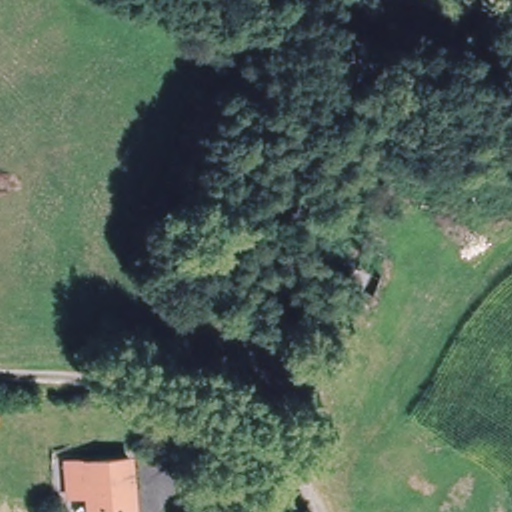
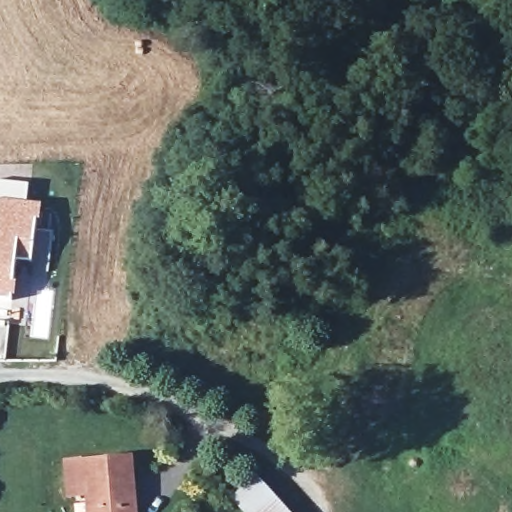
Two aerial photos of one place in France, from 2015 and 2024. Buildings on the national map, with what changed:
new [(27,202),(42,203),(40,220),(36,220),(32,263),(16,259),(13,282),(17,282),(15,294),(11,294),(11,300),(0,298),(0,181),(28,185),(27,202)]
unchanged [(66,495),(62,460),(78,458),(79,462),(131,457),(137,512),(89,512),(87,494),(66,495)]

